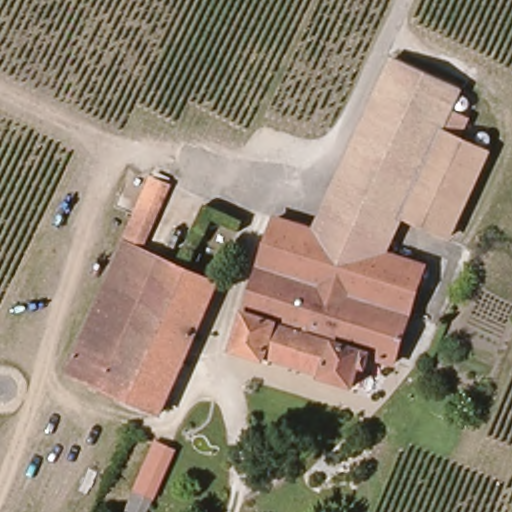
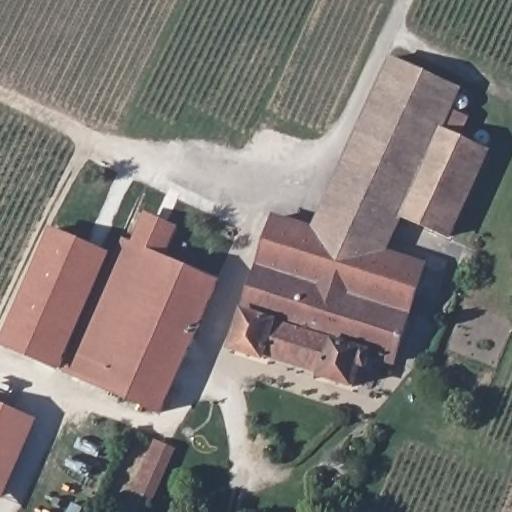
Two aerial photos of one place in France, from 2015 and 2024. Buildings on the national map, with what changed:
unchanged [(388,54),(455,85),(446,109),(463,117),(455,136),(486,150),(450,235),(402,215),(401,217),(336,184),(388,54)]
unchanged [(150,179),(167,186),(141,249),(124,241),(150,179)]
unchanged [(401,217),(386,252),(316,231),(336,184),(401,217)]
unchanged [(425,264),(398,358),(379,353),(375,366),(363,364),(357,385),(328,377),(329,371),(265,353),(263,356),(235,348),(275,218),(316,231),(386,252),(425,264)]
new [(62,371),(3,346),(56,227),(113,253),(62,371)]
unchanged [(141,249),(217,281),(162,412),(69,371),(124,241),(141,249)]
new [(11,408),(39,420),(0,511),(0,392),(15,398),(11,408)]
unchanged [(171,455),(146,512),(141,512),(129,507),(154,448),(171,455)]

